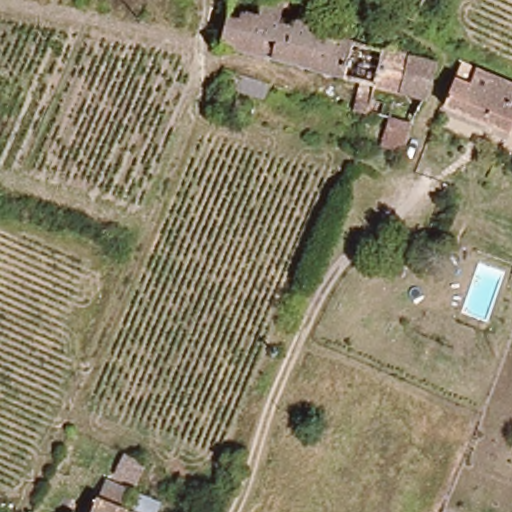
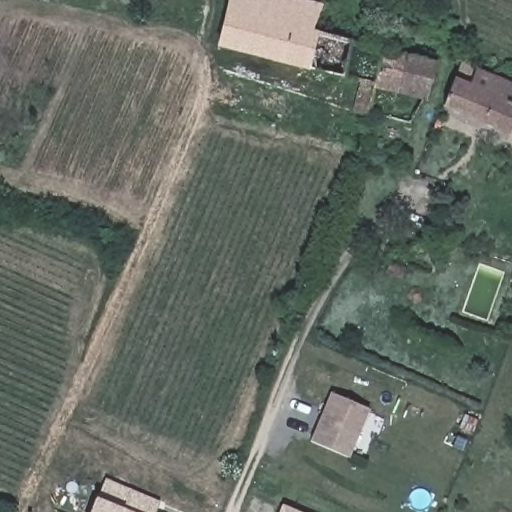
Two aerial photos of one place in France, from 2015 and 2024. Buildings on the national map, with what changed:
unchanged [(348,116),(356,87),(214,39),(226,0),(311,0),(307,21),(355,39),(386,50),(397,55),(433,70),(419,111),(411,107),(399,134),(389,159),(354,146),(361,122),(348,116)]
unchanged [(443,105),(460,64),(512,85),(512,120),(507,131),(443,105)]
new [(310,441),(330,392),(369,408),(350,457),(310,441)]
unchanged [(119,481),(127,462),(149,471),(141,490),(119,481)]
unchanged [(96,500),(119,508),(125,494),(149,503),(146,512),(91,512),(96,500)]
new [(283,504),(302,512),(280,512),(283,504)]

